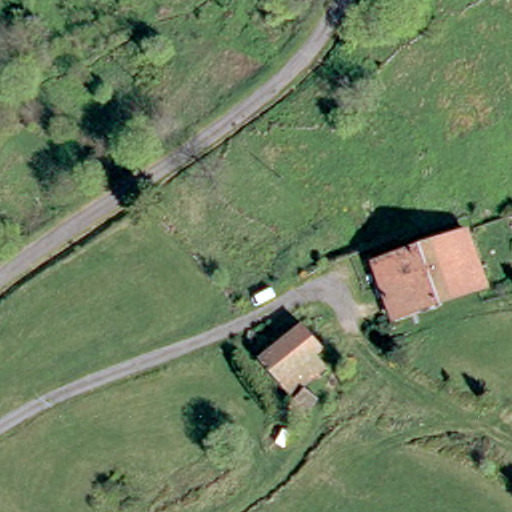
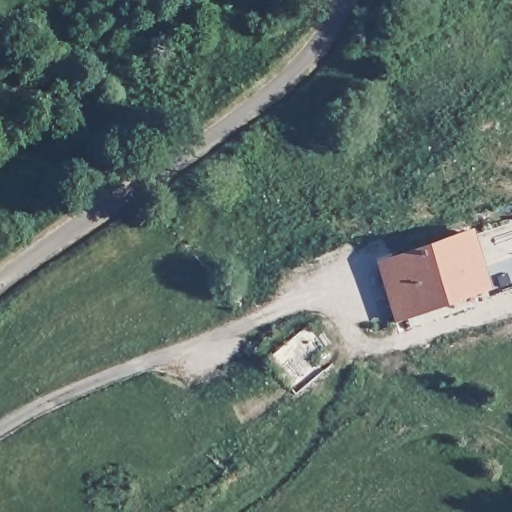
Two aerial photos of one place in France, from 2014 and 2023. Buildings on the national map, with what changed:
unchanged [(391,326),(389,319),(370,267),(460,235),(477,288),(415,310),(417,317),(391,326)]
unchanged [(290,396),(266,368),(280,356),(272,347),(299,323),(303,327),(321,347),(310,357),(321,370),(304,385),(300,389),(314,401),(303,414),(297,420),(287,409),(295,399),(290,396)]

